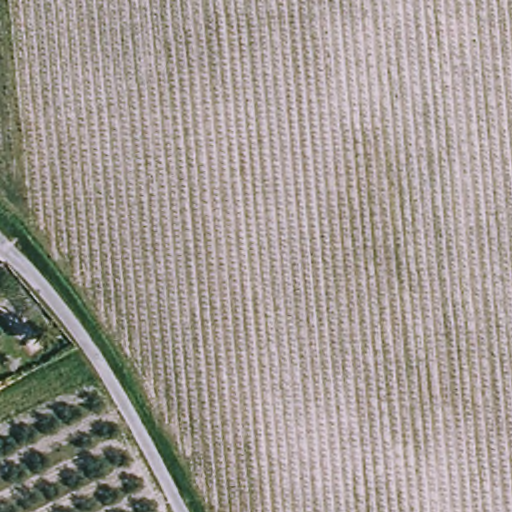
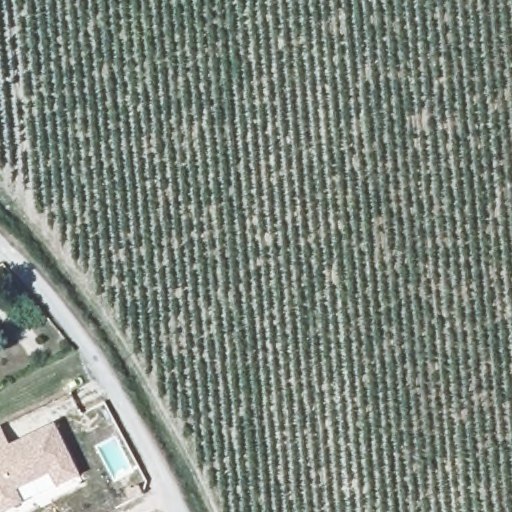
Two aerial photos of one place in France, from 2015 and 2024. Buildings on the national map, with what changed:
new [(58,486),(51,473),(18,489),(25,502),(5,512),(0,512),(0,427),(3,425),(11,444),(56,422),(82,475),(58,486)]

